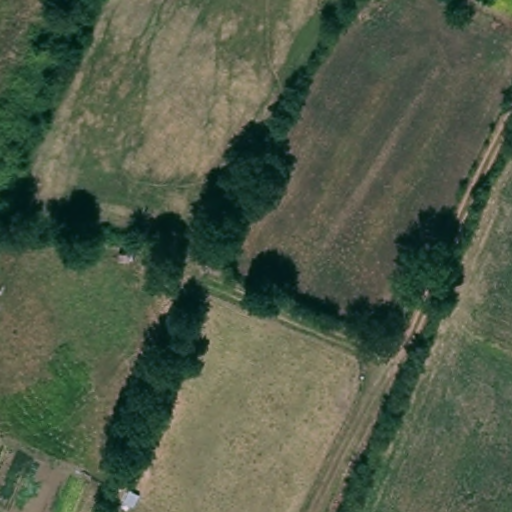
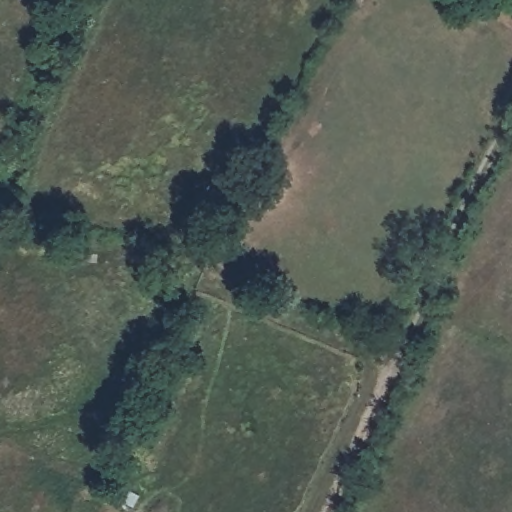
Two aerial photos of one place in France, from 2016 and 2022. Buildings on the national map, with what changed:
[]

